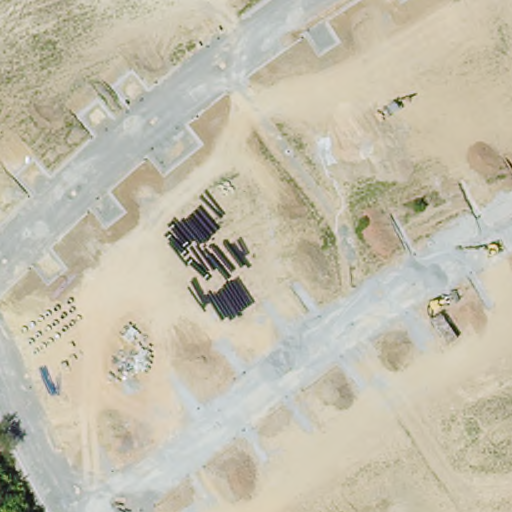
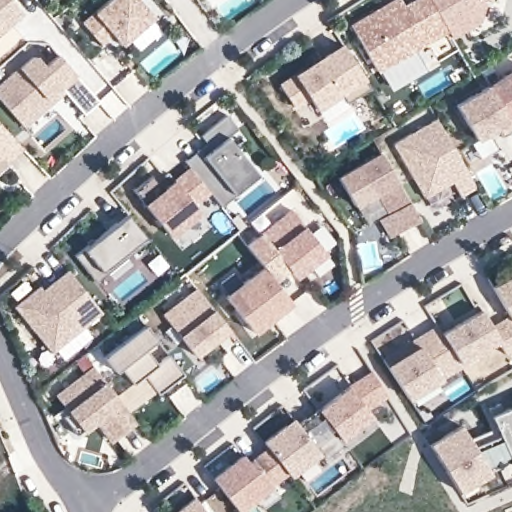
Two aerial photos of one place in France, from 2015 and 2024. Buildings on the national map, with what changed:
new [(0,0),(8,0),(20,13),(0,29),(0,0)]
new [(123,44),(114,35),(101,46),(82,23),(94,12),(107,0),(140,0),(154,16),(123,44)]
new [(378,72),(350,24),(392,0),(400,0),(403,5),(412,0),(483,0),(485,4),(482,21),(451,37),(448,30),(378,72)]
new [(346,102),(343,94),(317,110),(310,98),(295,110),(279,83),(293,72),(340,42),(362,77),(364,76),(369,88),(346,102)]
new [(64,90),(26,126),(0,97),(0,84),(20,67),(35,54),(45,65),(57,53),(76,75),(98,101),(83,113),(64,90)]
new [(502,136),(500,127),(489,134),(496,149),(480,158),(471,142),(476,139),(457,105),(492,85),(491,83),(512,72),(512,117),(510,118),(512,122),(512,130),(502,136)]
new [(233,192),(221,205),(211,191),(191,202),(201,214),(171,237),(144,202),(134,191),(153,176),(164,187),(173,179),(190,167),(185,161),(198,151),(203,156),(213,147),(201,135),(228,114),(239,127),(228,136),(257,174),(233,192)]
new [(460,197),(454,182),(425,199),(393,144),(435,118),(475,189),(460,197)]
new [(0,124),(23,149),(0,171),(0,124)]
new [(378,217),(368,224),(360,207),(357,209),(340,176),(380,152),(397,182),(419,221),(389,237),(378,217)]
new [(255,333),(226,296),(265,267),(246,243),(291,209),(305,227),(326,255),(297,280),(282,262),(269,274),(293,305),(255,333)]
new [(82,246),(125,211),(141,232),(143,231),(148,235),(146,236),(148,240),(136,250),(133,247),(94,277),(75,253),(82,246)]
new [(15,307),(39,286),(43,290),(69,270),(102,312),(51,352),(15,307)]
new [(409,400),(387,365),(382,358),(436,325),(443,332),(480,310),(489,325),(508,313),(493,285),(512,274),(512,321),(512,353),(507,356),(498,341),(459,362),(461,368),(441,379),(409,400)]
new [(179,333),(164,313),(196,288),(213,308),(229,330),(195,357),(179,333)]
new [(145,373),(132,382),(122,367),(116,371),(106,356),(146,326),(156,340),(144,349),(156,365),(169,355),(183,373),(158,393),(145,373)]
new [(112,442),(100,420),(84,431),(78,436),(62,416),(68,410),(57,393),(93,366),(105,381),(121,403),(136,423),(112,442)]
new [(387,396),(365,408),(373,416),(341,439),(348,448),(326,463),(319,453),(291,475),(287,472),(271,485),(238,511),(212,477),(243,453),(248,460),(269,445),(264,440),(291,418),(297,424),(317,409),(319,409),(347,386),(349,384),(371,372),(387,396)]
new [(510,463),(485,476),(455,495),(424,447),(459,428),(470,447),(500,433),(492,417),(512,408),(512,463),(510,463)]
new [(172,512),(194,496),(205,512),(172,512)]

